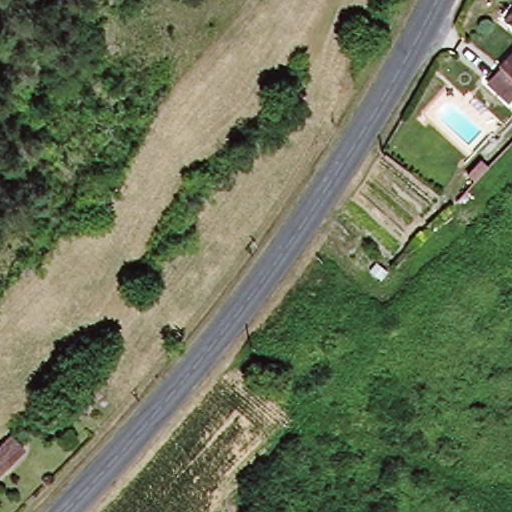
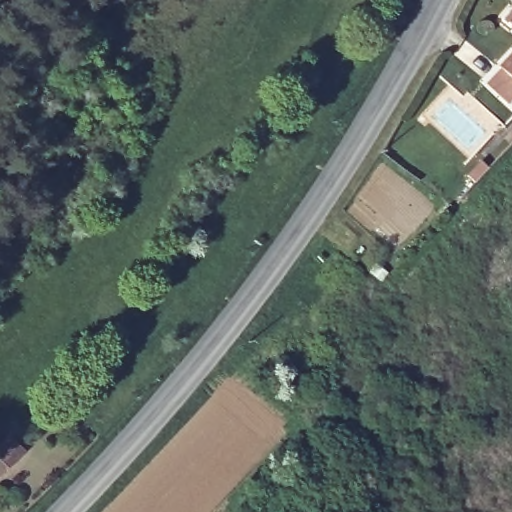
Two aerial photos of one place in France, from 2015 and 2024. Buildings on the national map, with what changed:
unchanged [(504,15),(512,7),(512,23),(504,15)]
unchanged [(493,89),(482,77),(512,46),(512,94),(503,99),(493,89)]
unchanged [(0,465),(0,437),(9,429),(22,444),(0,465)]

